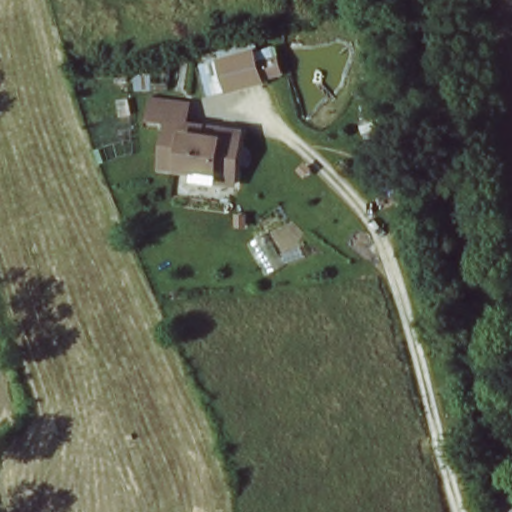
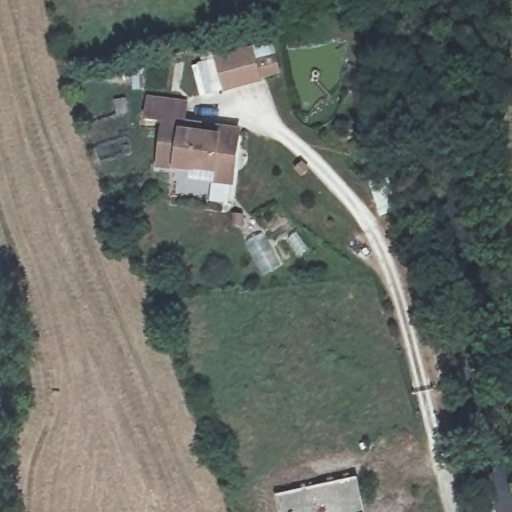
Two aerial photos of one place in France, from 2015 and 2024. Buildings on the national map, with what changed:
unchanged [(208,93),(201,64),(236,56),(256,52),(259,64),(262,80),(242,85),(242,86),(208,93)]
unchanged [(209,184),(188,181),(189,174),(156,170),(162,126),(143,124),(147,103),(183,109),(181,128),(236,136),(230,177),(229,187),(209,184)]
new [(357,481),(363,512),(279,512),(276,498),(357,481)]

